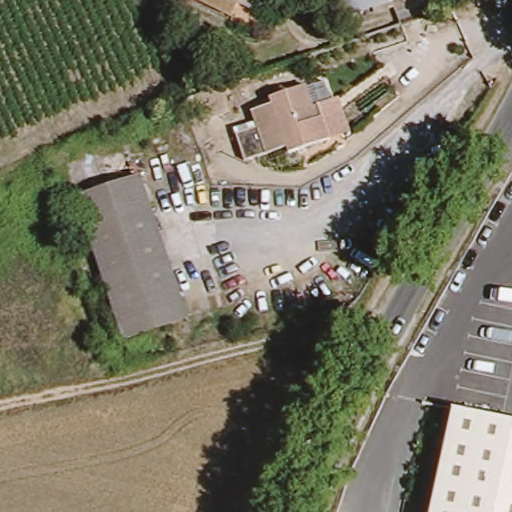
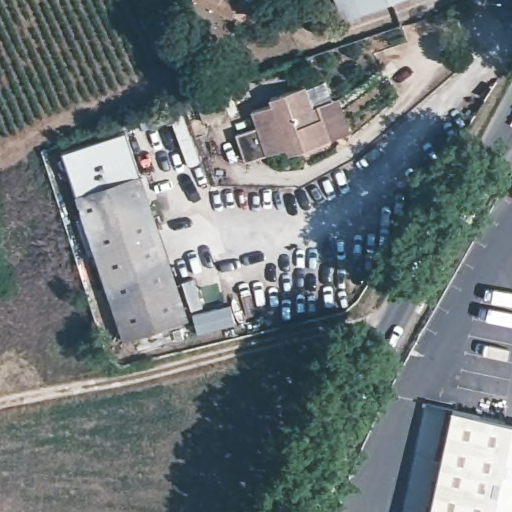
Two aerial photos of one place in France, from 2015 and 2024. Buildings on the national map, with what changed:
unchanged [(202,0),(243,0),(235,16),(202,0)]
unchanged [(394,14),(374,21),(371,13),(343,24),(334,0),(405,0),(390,6),(394,14)]
unchanged [(286,152),(245,166),(236,140),(258,133),(251,116),(272,109),(270,103),(305,91),(305,93),(322,86),(330,107),(318,111),(322,121),(330,144),(289,159),(286,152)]
new [(78,200),(62,152),(125,131),(140,180),(78,200)]
unchanged [(122,344),(75,201),(140,180),(186,323),(122,344)]
unchanged [(455,409),(512,421),(512,512),(432,512),(455,409)]

